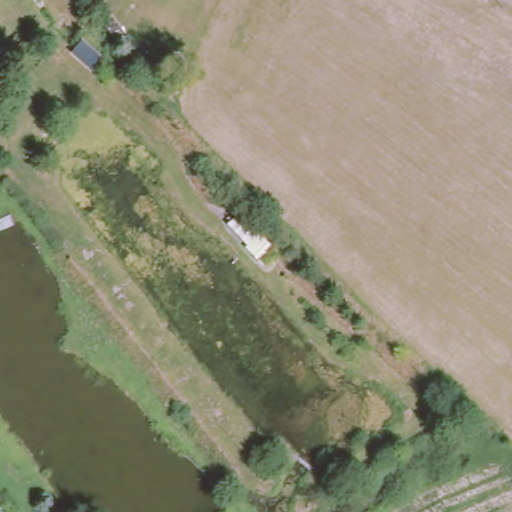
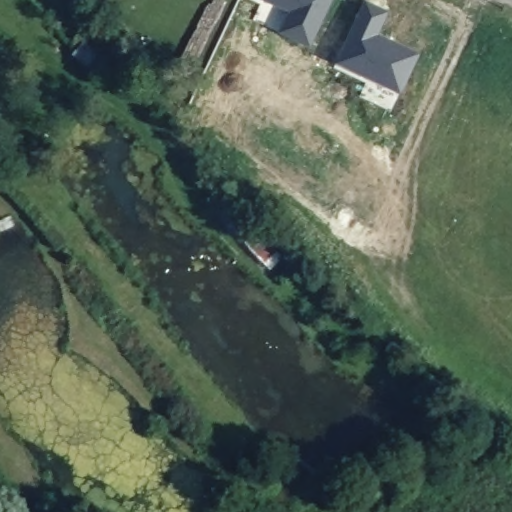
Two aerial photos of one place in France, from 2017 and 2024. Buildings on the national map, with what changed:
new [(278,33),(288,13),(260,0),(332,0),(308,48),(278,33)]
new [(418,54),(399,94),(334,64),(364,3),(388,13),(377,35),(418,54)]
unchanged [(102,63),(92,74),(69,55),(80,42),(102,63)]

